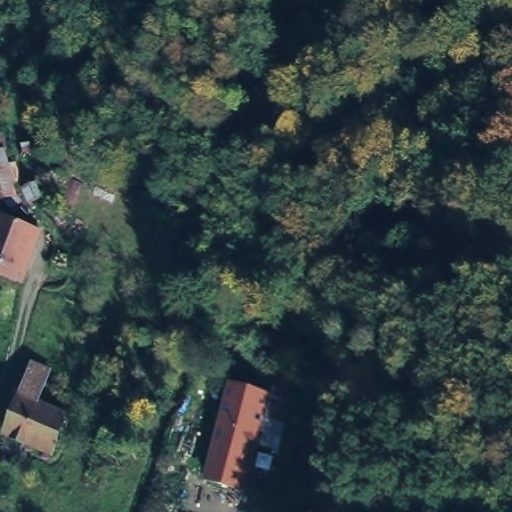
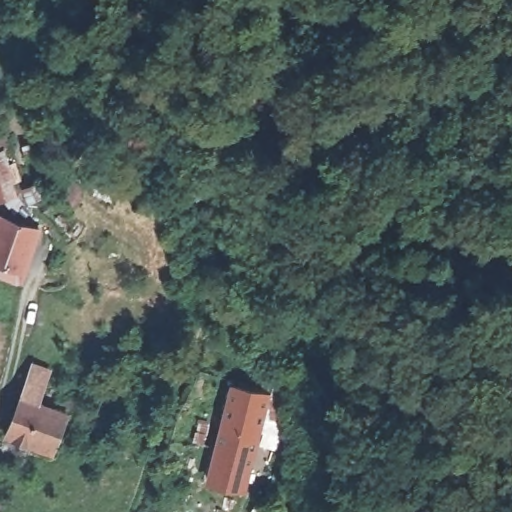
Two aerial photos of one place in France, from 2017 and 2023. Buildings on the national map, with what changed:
unchanged [(3,157),(3,201),(0,201),(0,131),(8,131),(8,157),(3,157)]
unchanged [(21,277),(0,270),(0,261),(0,214),(38,227),(21,277)]
unchanged [(44,365),(34,397),(68,410),(53,450),(5,432),(30,362),(44,365)]
unchanged [(274,447),(246,441),(231,494),(198,485),(221,389),(256,397),(258,387),(288,392),(274,447)]

